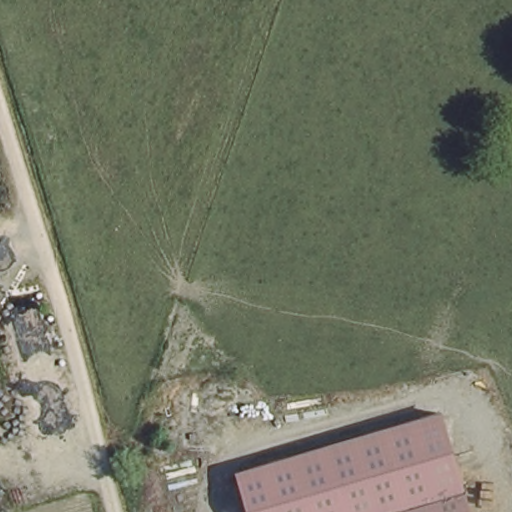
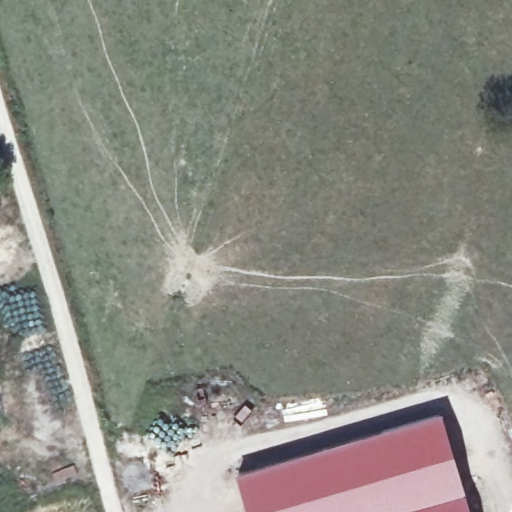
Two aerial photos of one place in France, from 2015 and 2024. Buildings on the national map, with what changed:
unchanged [(246,512),(234,473),(444,413),(473,512),(246,512)]

